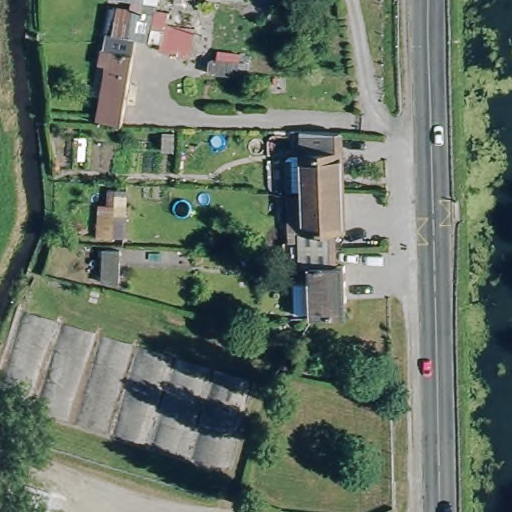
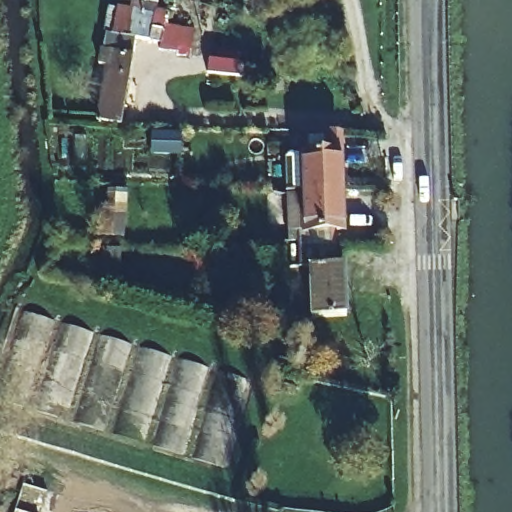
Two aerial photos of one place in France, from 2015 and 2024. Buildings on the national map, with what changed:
unchanged [(120,0),(161,0),(160,6),(168,7),(165,23),(197,28),(190,54),(137,44),(135,54),(117,50),(114,68),(109,67),(120,0)]
unchanged [(109,67),(114,68),(117,50),(135,54),(124,127),(100,125),(109,67)]
unchanged [(307,150),(306,133),(344,135),(343,193),(308,193),(307,150)]
unchanged [(283,150),(307,150),(308,193),(310,228),(285,228),(283,150)]
unchanged [(95,234),(99,205),(106,205),(109,188),(127,188),(126,236),(95,234)]
unchanged [(308,193),(343,193),(343,233),(337,234),(337,249),(311,249),(310,228),(308,193)]
unchanged [(109,248),(122,253),(112,281),(99,276),(109,248)]
unchanged [(314,318),(312,266),(311,249),(337,249),(338,265),(347,265),(347,317),(314,318)]

